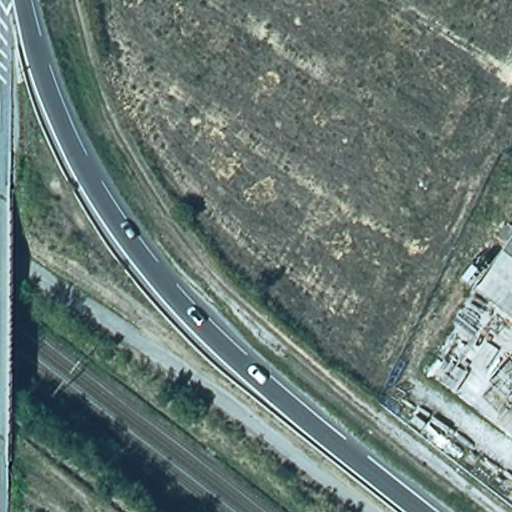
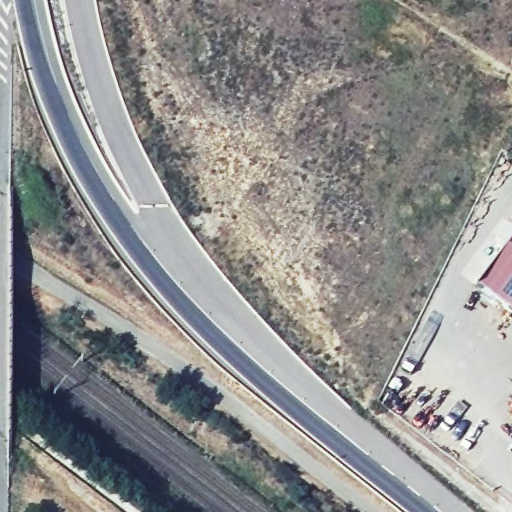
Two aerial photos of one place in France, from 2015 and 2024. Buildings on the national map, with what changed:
unchanged [(512,236),(512,320),(472,290),(512,236)]

